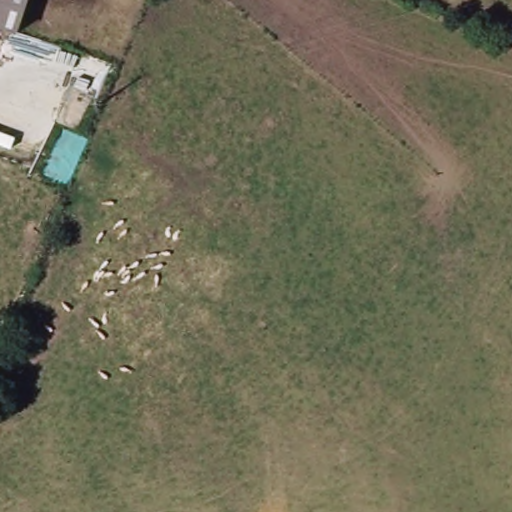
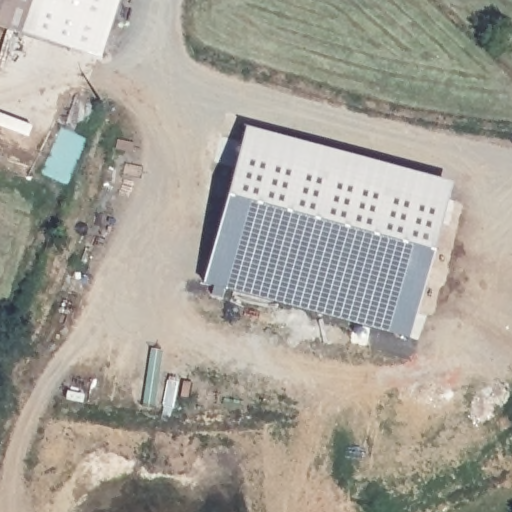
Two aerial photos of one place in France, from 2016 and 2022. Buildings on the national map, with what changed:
unchanged [(17,33),(0,28),(0,0),(28,0),(17,33)]
new [(450,183),(407,338),(206,282),(246,127),(450,183)]

